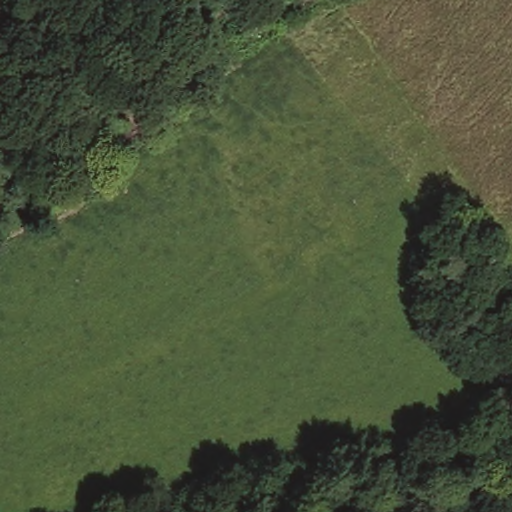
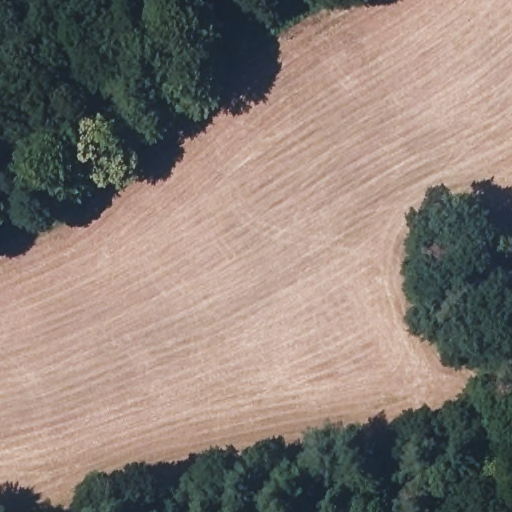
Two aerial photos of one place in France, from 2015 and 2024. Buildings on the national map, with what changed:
[]

